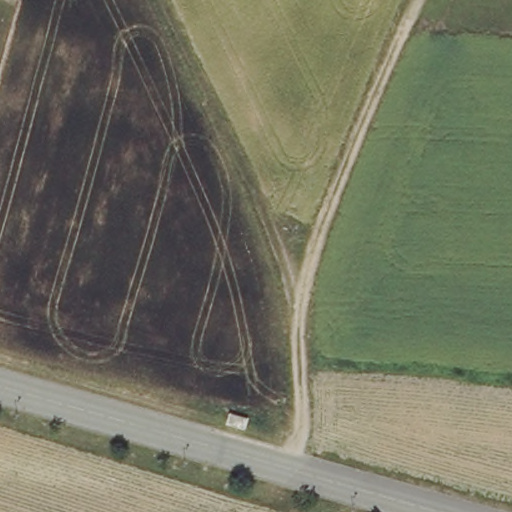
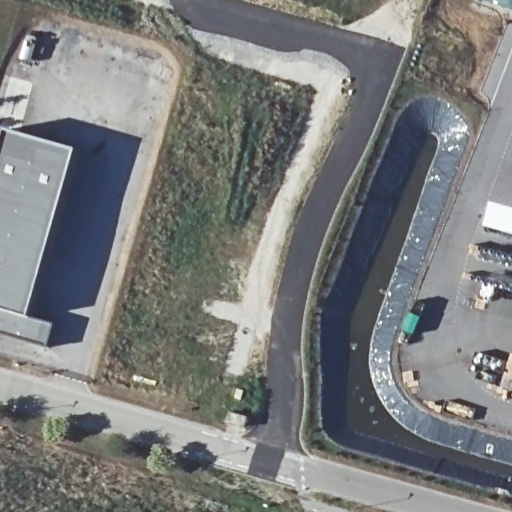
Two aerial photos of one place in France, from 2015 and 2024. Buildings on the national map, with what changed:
new [(8,129),(80,150),(32,318),(55,324),(49,346),(0,332),(0,157),(8,129)]

